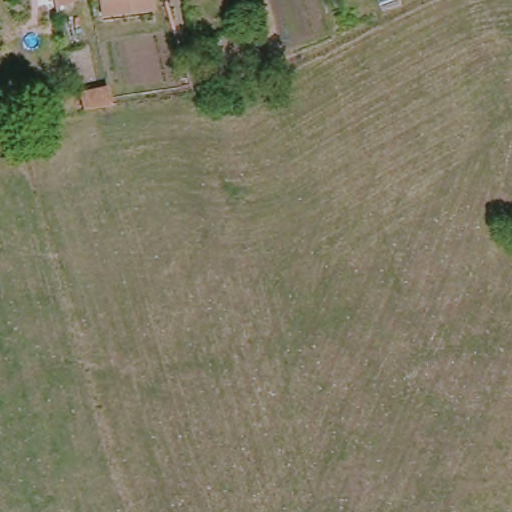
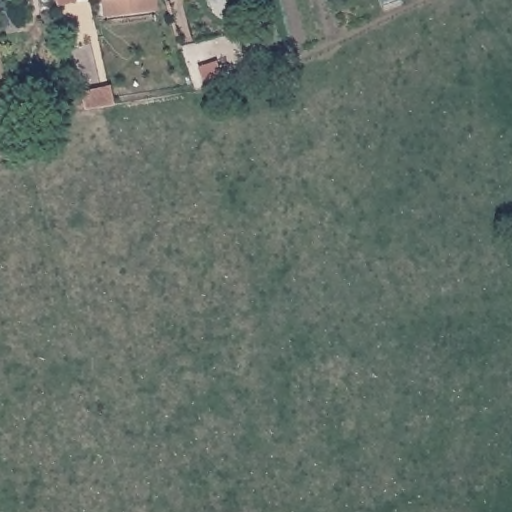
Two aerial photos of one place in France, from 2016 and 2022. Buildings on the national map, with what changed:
unchanged [(101,8),(100,0),(150,0),(150,3),(101,8)]
unchanged [(111,98),(113,111),(84,116),(81,104),(111,98)]

